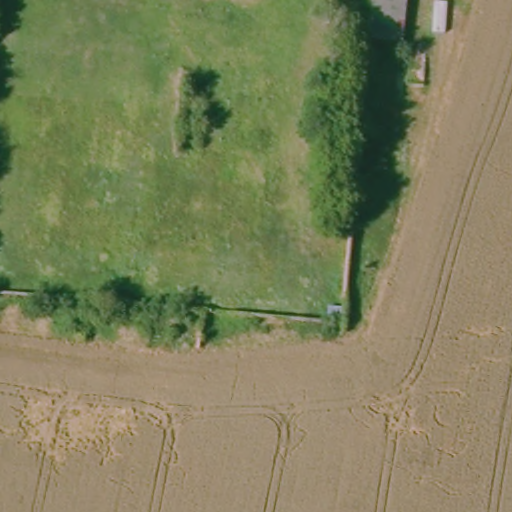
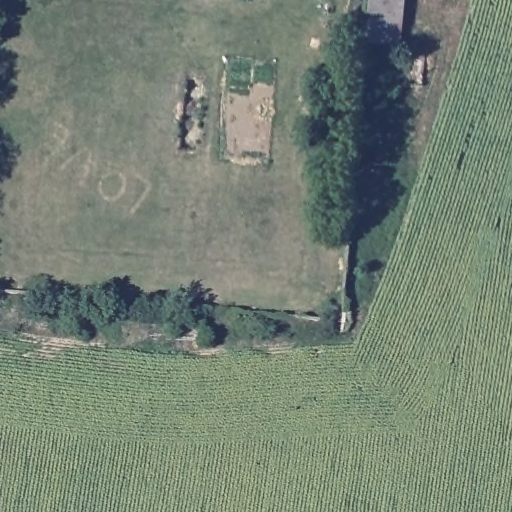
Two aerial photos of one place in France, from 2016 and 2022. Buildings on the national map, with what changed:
unchanged [(380,37),(383,0),(415,0),(412,40),(380,37)]

